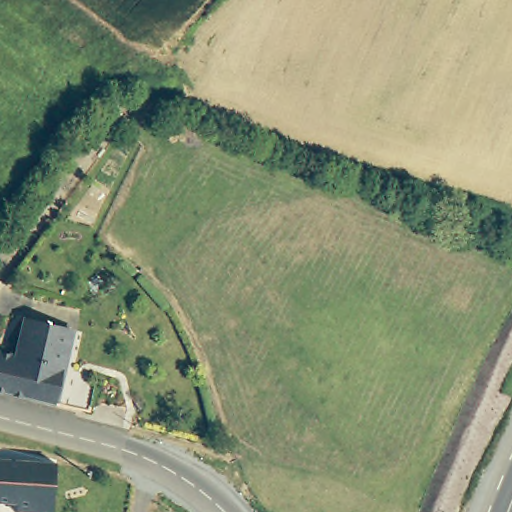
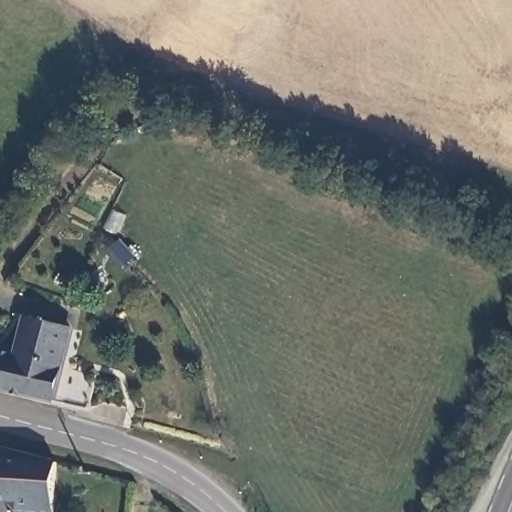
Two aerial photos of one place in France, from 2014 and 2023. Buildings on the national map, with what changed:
unchanged [(76,329),(59,403),(0,389),(0,350),(20,356),(30,318),(76,329)]
unchanged [(61,463),(61,464),(58,512),(20,512),(20,502),(0,501),(0,459),(61,463)]

